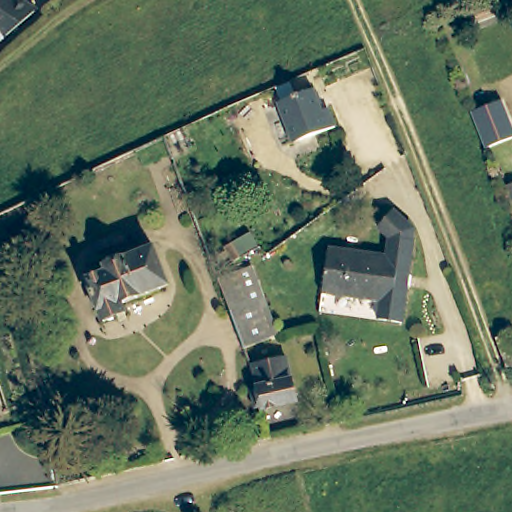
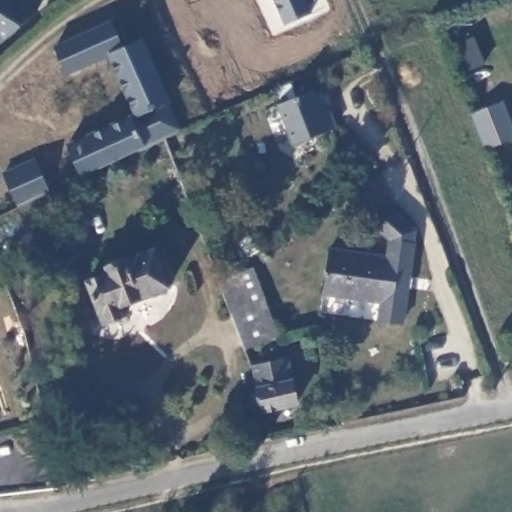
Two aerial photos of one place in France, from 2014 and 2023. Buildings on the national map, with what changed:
unchanged [(0,42),(0,0),(18,0),(35,12),(0,42)]
new [(308,4),(313,15),(286,26),(273,0),(316,0),(308,4)]
new [(132,111),(108,56),(66,72),(53,45),(114,18),(125,44),(145,35),(172,100),(168,102),(180,129),(145,145),(80,176),(66,142),(132,111)]
unchanged [(294,146),(277,107),(311,91),(321,112),(328,110),(335,127),(294,146)]
unchanged [(485,150),(471,114),(503,101),(512,125),(512,139),(485,150)]
new [(16,205),(1,172),(36,157),(51,190),(16,205)]
unchanged [(329,255),(388,261),(390,241),(379,231),(391,217),(395,215),(414,231),(412,244),(415,245),(410,275),(414,280),(412,292),(406,296),(401,328),(378,326),(381,305),(322,297),(329,255)]
unchanged [(125,313),(102,322),(86,280),(107,271),(106,266),(154,247),(168,286),(121,303),(125,313)]
unchanged [(240,308),(231,312),(218,277),(252,265),(264,298),(240,308)]
unchanged [(278,335),(244,347),(231,312),(240,308),(264,298),(278,335)]
unchanged [(508,368),(497,338),(511,333),(512,337),(512,367),(508,368)]
unchanged [(286,358),(297,403),(265,410),(262,411),(261,407),(254,409),(252,399),(250,392),(257,391),(252,365),(286,358)]

